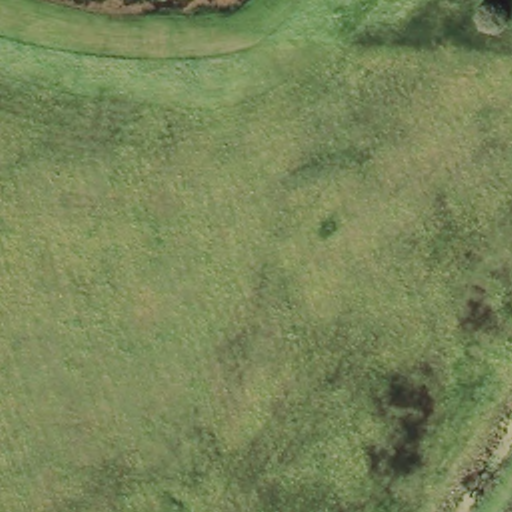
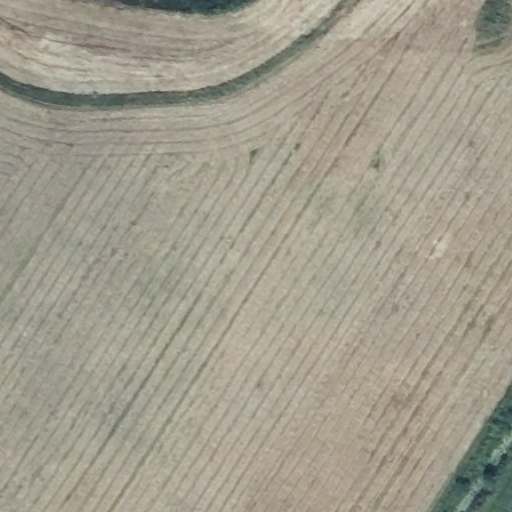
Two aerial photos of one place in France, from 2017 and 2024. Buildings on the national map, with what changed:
[]

